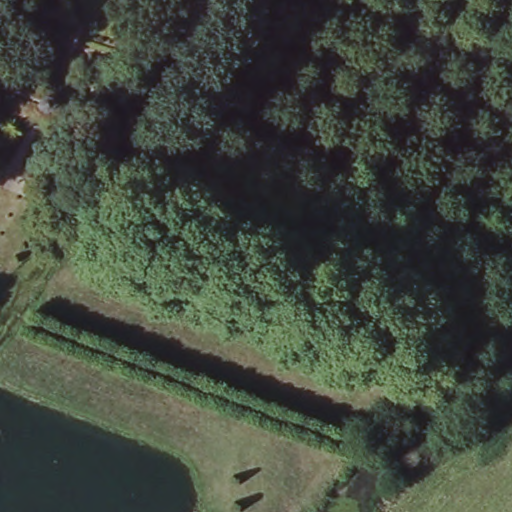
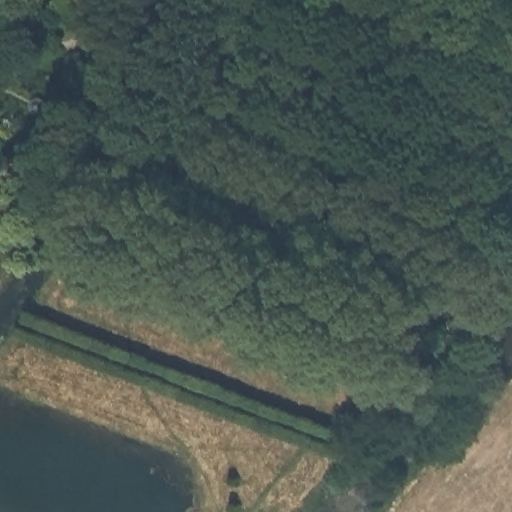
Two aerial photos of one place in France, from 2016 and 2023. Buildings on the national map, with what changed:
unchanged [(99,77),(121,86),(104,120),(83,108),(99,77)]

